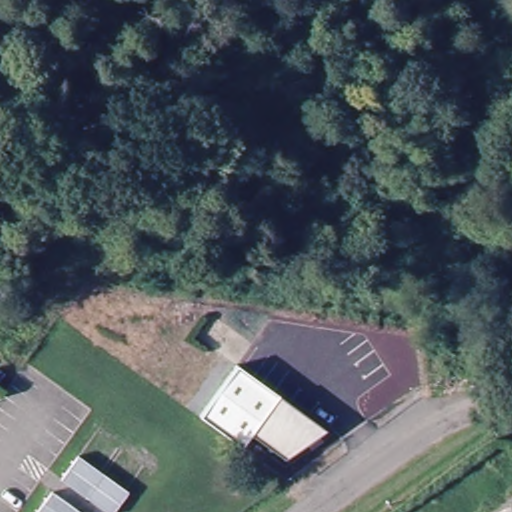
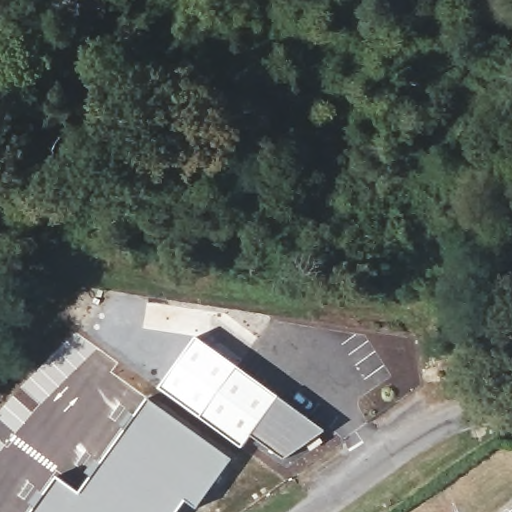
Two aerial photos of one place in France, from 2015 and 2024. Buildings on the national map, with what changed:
new [(199,418),(159,388),(196,335),(238,365),(236,367),(199,418)]
unchanged [(236,367),(279,397),(252,435),(241,449),(220,433),(199,418),(236,367)]
new [(80,490),(102,462),(150,397),(234,456),(197,508),(187,501),(179,512),(32,512),(59,475),(80,490)]
unchanged [(279,397),(325,430),(285,458),(252,435),(279,397)]
demolished [(132,492),(117,512),(109,512),(64,481),(80,457),(132,492)]
demolished [(83,512),(39,512),(54,493),(83,512)]
unchanged [(512,512),(510,512),(512,510),(512,512)]

